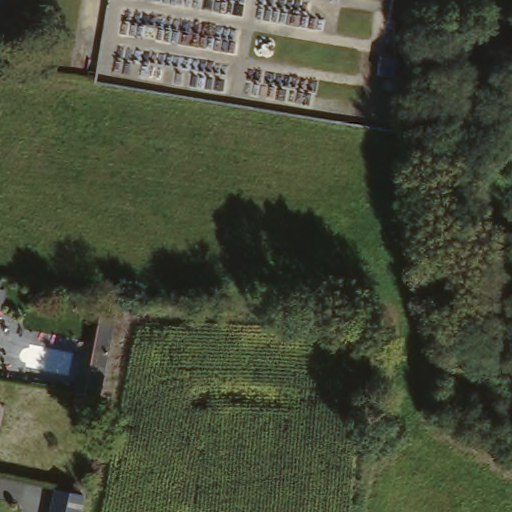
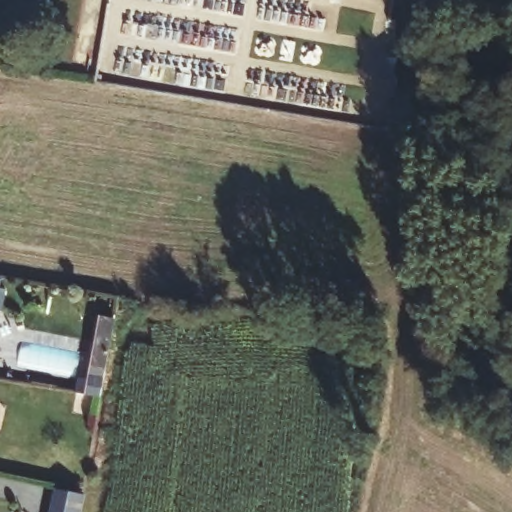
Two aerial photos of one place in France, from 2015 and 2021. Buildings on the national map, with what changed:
unchanged [(403,50),(398,68),(383,64),(389,46),(403,50)]
unchanged [(5,295),(4,313),(0,313),(0,286),(6,286),(5,295)]
unchanged [(89,364),(97,316),(114,318),(113,319),(109,347),(105,367),(89,364)]
unchanged [(93,488),(88,512),(60,512),(64,485),(93,488)]

